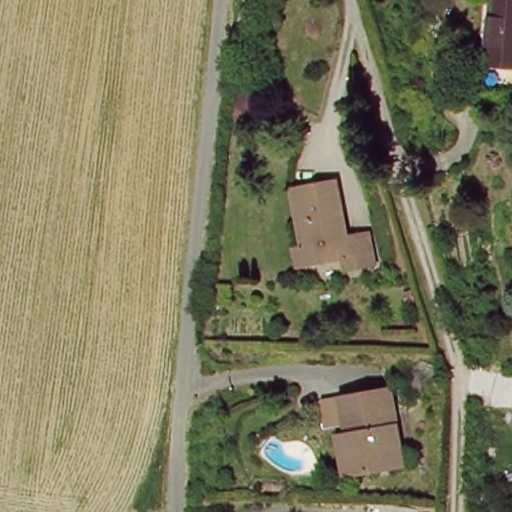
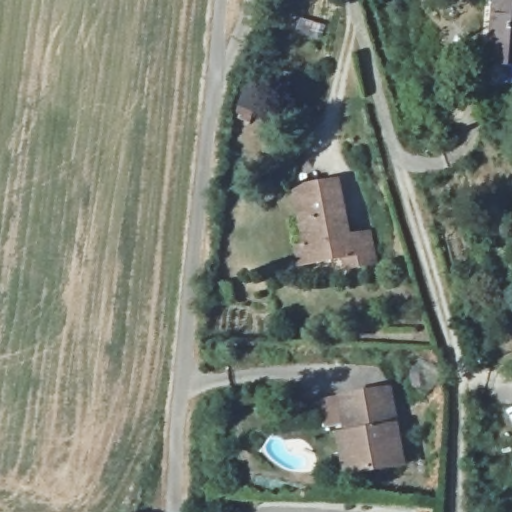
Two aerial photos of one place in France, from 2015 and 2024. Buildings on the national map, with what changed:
unchanged [(489,55),(498,0),(512,0),(512,59),(489,55)]
unchanged [(312,251),(303,179),(346,175),(353,231),(376,230),(380,262),(346,266),(315,270),(312,251)]
unchanged [(352,481),(340,436),(351,435),(345,397),(395,389),(413,468),(352,481)]

